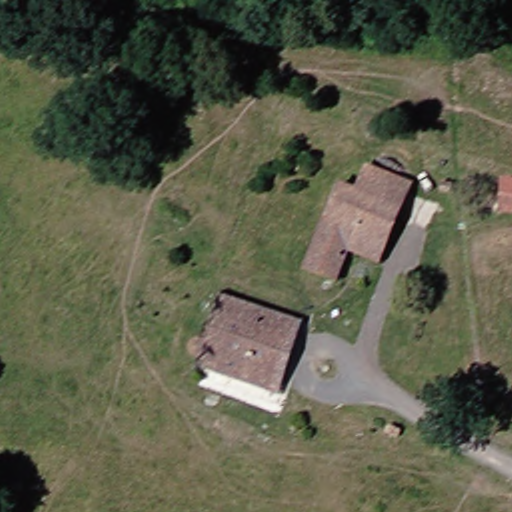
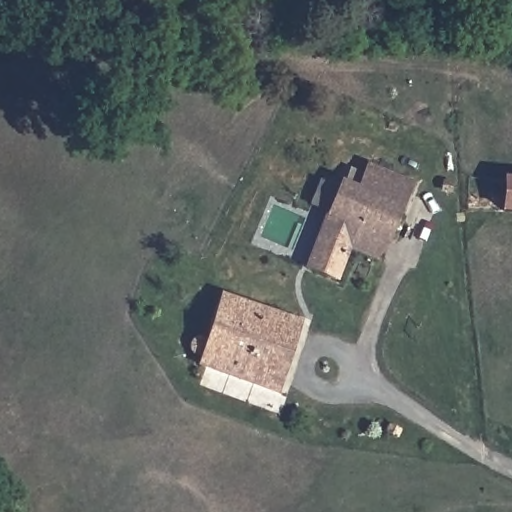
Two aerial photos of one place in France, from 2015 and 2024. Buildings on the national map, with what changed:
unchanged [(376,157),(416,174),(405,199),(366,182),(376,157)]
unchanged [(307,288),(300,285),(348,175),(366,182),(405,199),(392,232),(383,251),(353,237),(342,270),(331,266),(319,294),(307,288)]
unchanged [(489,204),(490,176),(512,177),(512,206),(489,204)]
unchanged [(267,381),(212,362),(206,379),(193,375),(206,336),(217,342),(237,295),(290,312),(267,381)]
unchanged [(267,381),(290,312),(307,319),(285,387),(267,381)]

